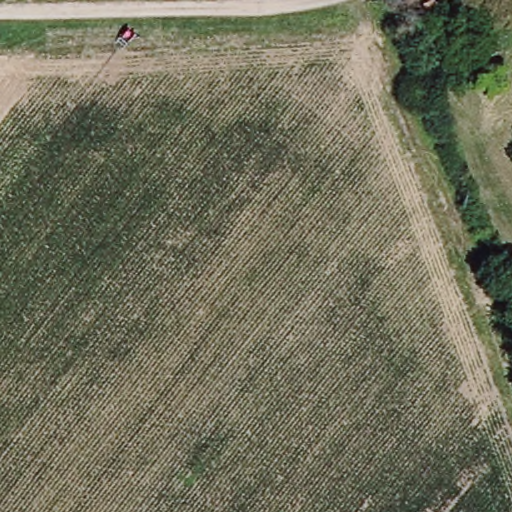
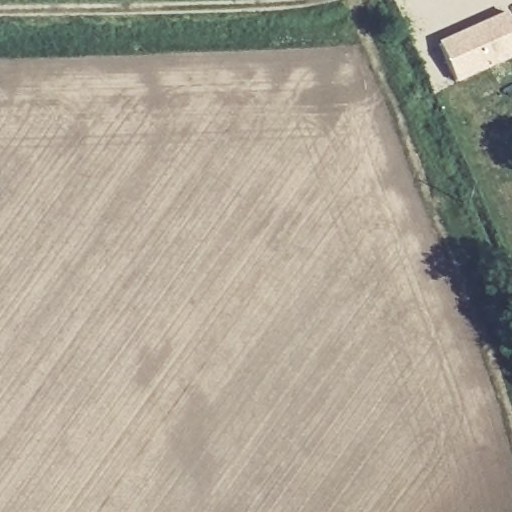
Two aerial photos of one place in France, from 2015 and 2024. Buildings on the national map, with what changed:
new [(506,11),(512,24),(512,58),(456,84),(436,42),(506,11)]

